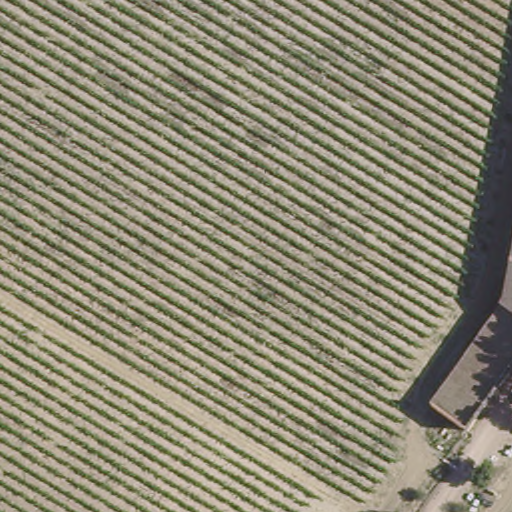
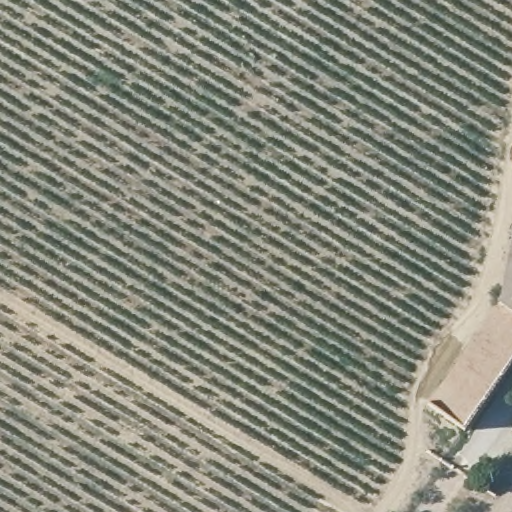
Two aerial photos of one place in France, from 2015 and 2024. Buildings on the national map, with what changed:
unchanged [(460,430),(424,404),(497,304),(512,223),(512,358),(460,430)]

